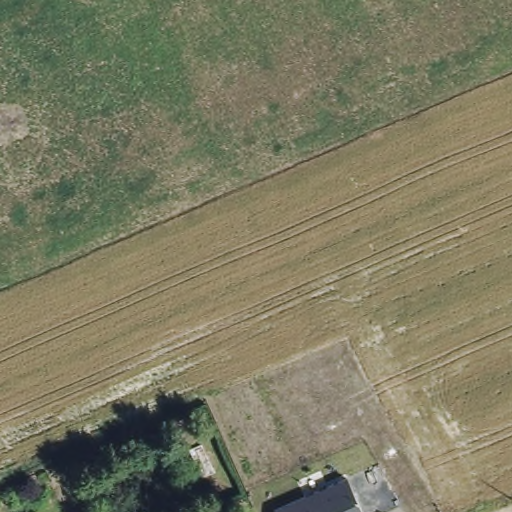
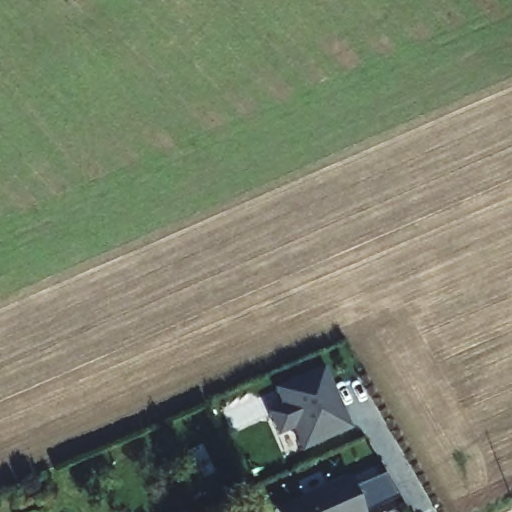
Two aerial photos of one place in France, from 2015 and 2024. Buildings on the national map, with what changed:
new [(352,430),(302,453),(292,432),(277,438),(267,415),(282,407),(273,389),(323,367),(352,430)]
unchanged [(267,510),(344,475),(359,512),(267,512),(267,510)]

